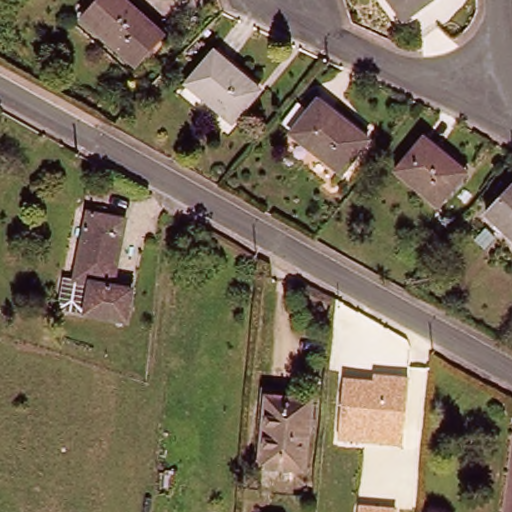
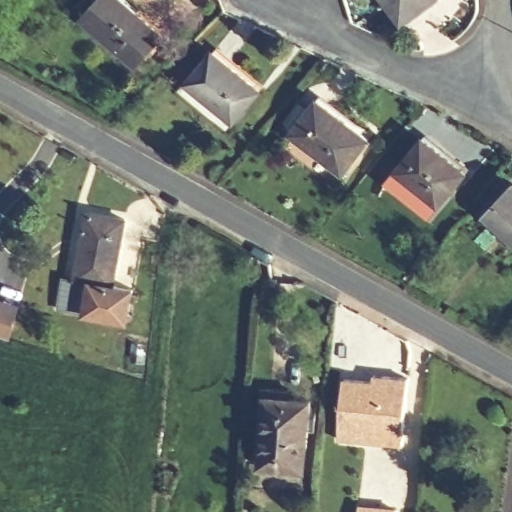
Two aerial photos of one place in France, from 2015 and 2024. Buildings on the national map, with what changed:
unchanged [(97,0),(118,0),(160,37),(132,68),(79,20),(97,0)]
unchanged [(385,0),(432,0),(402,22),(385,0)]
unchanged [(212,54),(255,92),(230,122),(186,84),(212,54)]
unchanged [(340,172),(290,131),(317,99),(366,140),(340,172)]
unchanged [(438,209),(397,175),(424,142),(465,176),(438,209)]
unchanged [(512,235),(487,215),(512,182),(512,235)]
unchanged [(131,288),(125,321),(85,314),(92,281),(73,278),(85,215),(122,222),(112,285),(131,288)]
unchanged [(87,282),(82,313),(54,307),(62,278),(74,279),(87,282)]
new [(10,338),(0,336),(0,299),(20,304),(10,338)]
unchanged [(372,381),(374,375),(407,377),(402,445),(338,440),(342,380),(372,381)]
unchanged [(260,465),(265,397),(307,401),(302,468),(260,465)]
unchanged [(397,512),(357,512),(358,505),(397,508),(397,512)]

